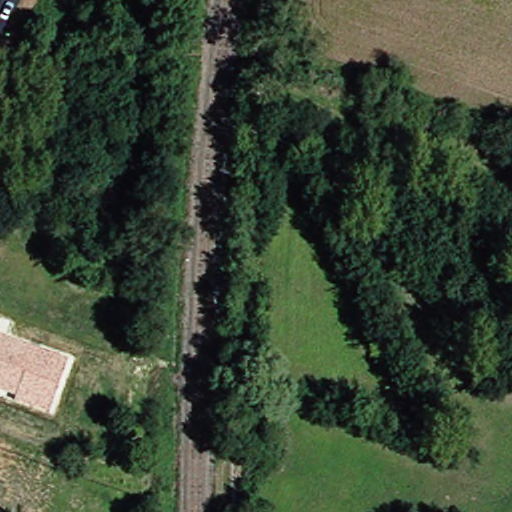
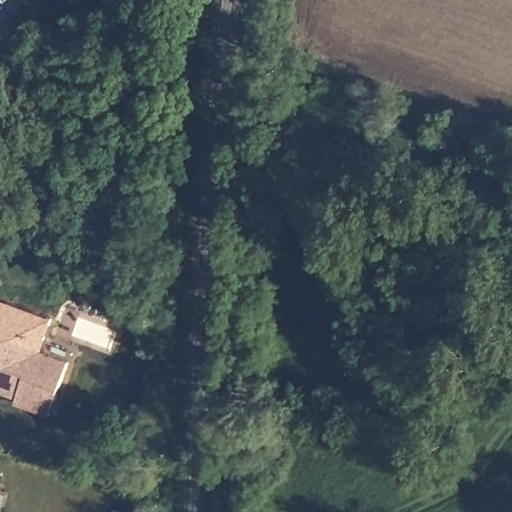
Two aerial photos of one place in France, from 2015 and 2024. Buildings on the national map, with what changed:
new [(0,336),(0,296),(57,316),(42,352),(0,336)]
unchanged [(15,402),(16,395),(0,390),(0,336),(67,361),(49,414),(15,402)]

